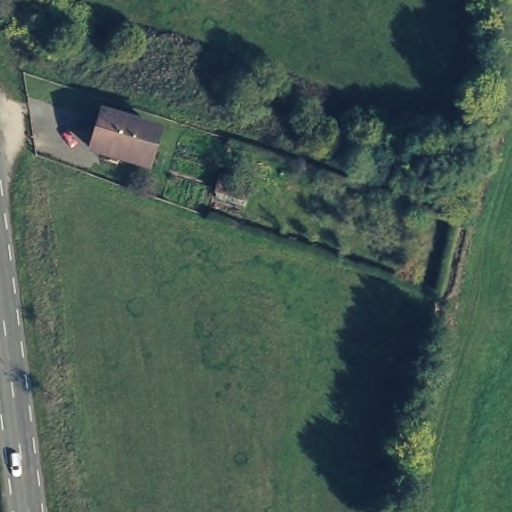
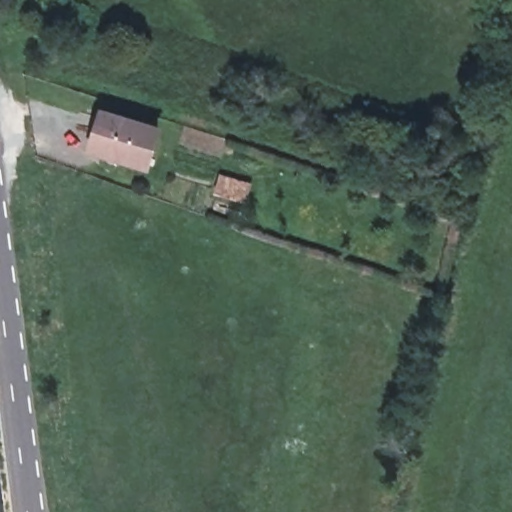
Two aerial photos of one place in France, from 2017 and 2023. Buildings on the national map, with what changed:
unchanged [(158,132),(148,167),(120,159),(118,165),(110,162),(111,156),(93,151),(105,115),(158,132)]
unchanged [(235,212),(206,204),(211,187),(240,195),(235,212)]

